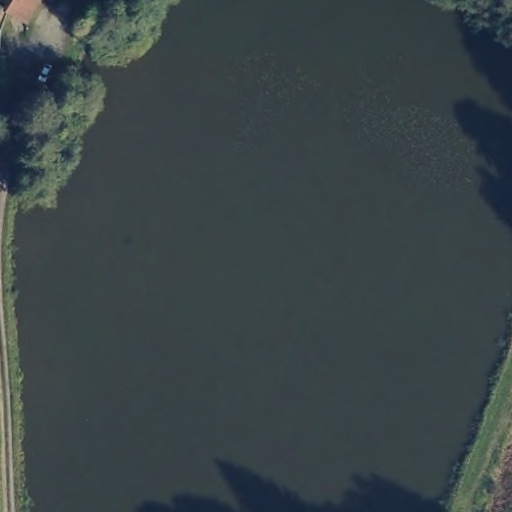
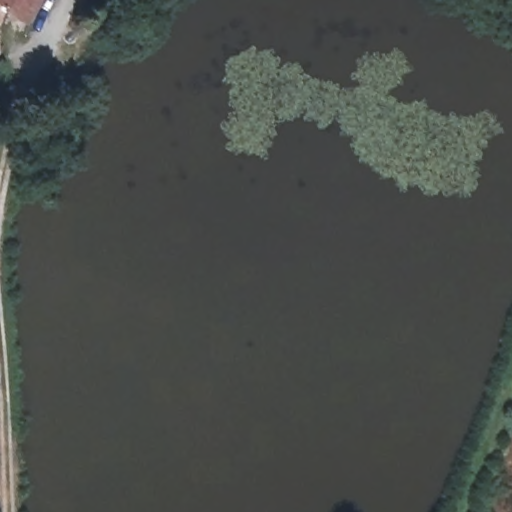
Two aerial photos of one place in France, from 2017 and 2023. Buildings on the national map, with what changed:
unchanged [(21,19),(0,8),(0,0),(30,0),(21,19)]

